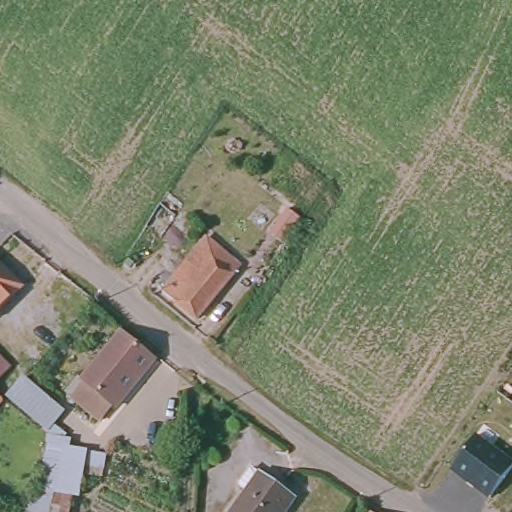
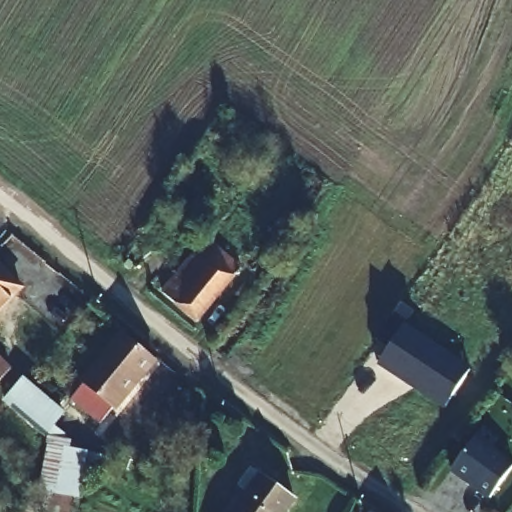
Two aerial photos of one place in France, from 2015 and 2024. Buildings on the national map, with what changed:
unchanged [(239,267),(194,323),(160,295),(205,240),(239,267)]
unchanged [(0,307),(0,268),(19,287),(0,307)]
new [(445,408),(377,362),(387,346),(370,336),(395,298),(413,311),(405,325),(471,368),(445,408)]
unchanged [(72,399),(85,383),(82,381),(86,377),(122,335),(156,361),(117,410),(114,407),(102,423),(83,408),(72,399)]
unchanged [(0,387),(0,360),(13,373),(0,387)]
unchanged [(22,380),(63,412),(50,429),(8,395),(22,380)]
unchanged [(0,412),(0,401),(5,406),(0,412)]
unchanged [(512,461),(512,467),(490,499),(450,470),(475,435),(512,461)]
unchanged [(49,492),(58,450),(73,452),(78,453),(68,500),(57,498),(48,496),(49,492)]
unchanged [(299,491),(286,512),(233,512),(263,467),(299,491)]
unchanged [(391,512),(370,512),(375,503),(391,512)]

